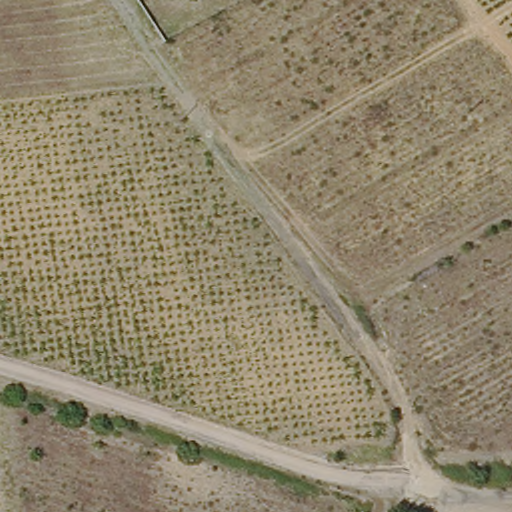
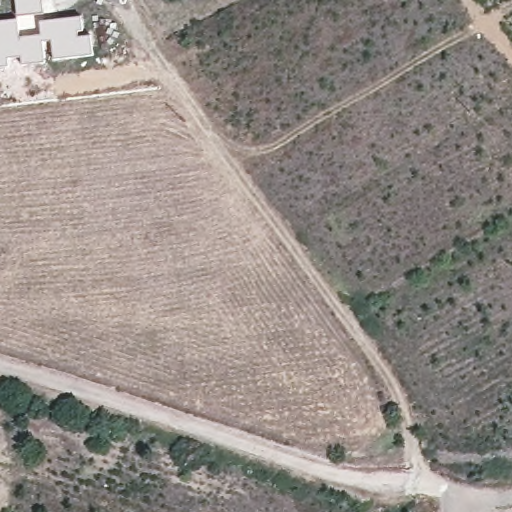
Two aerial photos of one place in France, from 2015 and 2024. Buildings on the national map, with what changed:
new [(42,13),(35,13),(17,16),(14,0),(41,0),(42,13)]
new [(20,38),(42,35),(40,22),(81,16),(83,29),(78,30),(79,36),(91,34),(93,55),(55,60),(52,39),(41,40),(44,63),(23,65),(22,56),(7,57),(8,67),(0,68),(0,21),(17,19),(20,38)]

